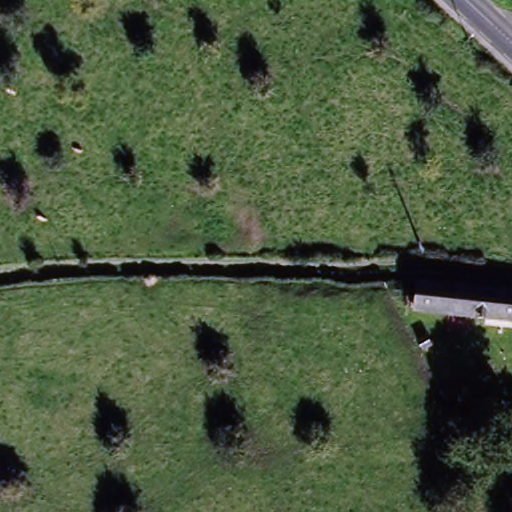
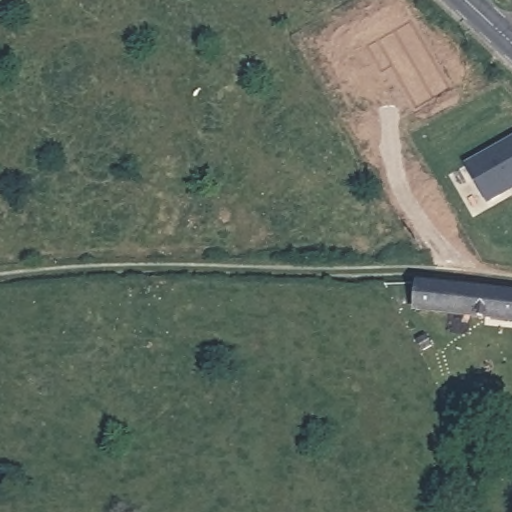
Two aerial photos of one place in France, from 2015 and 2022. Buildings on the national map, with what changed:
new [(512,140),(512,186),(500,194),(501,195),(483,206),(462,170),(512,140)]
unchanged [(512,298),(512,322),(420,311),(422,287),(512,298)]

